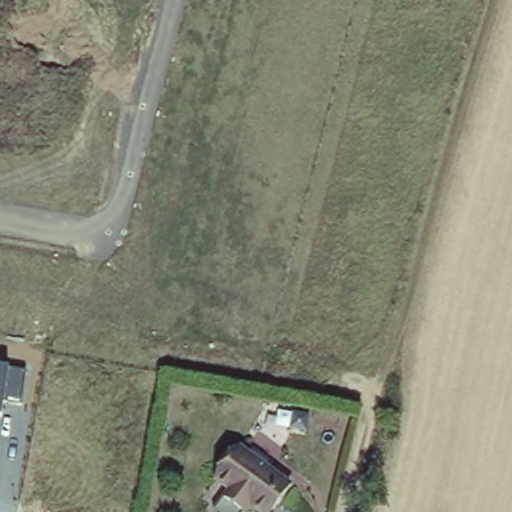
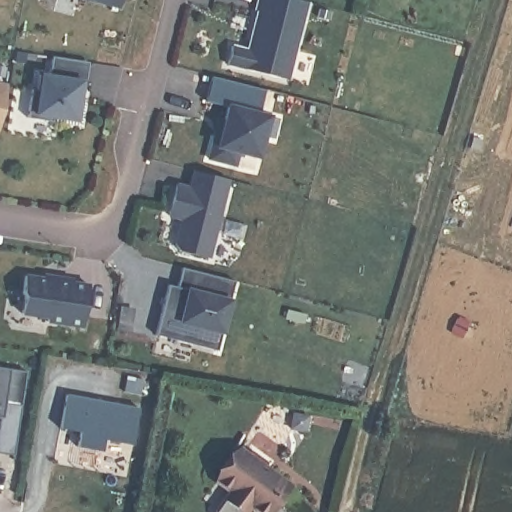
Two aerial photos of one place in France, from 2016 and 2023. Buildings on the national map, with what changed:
new [(80,0),(124,0),(121,10),(80,0)]
new [(288,82),(228,67),(232,49),(249,52),(258,13),(256,12),(259,0),(292,0),(308,4),(288,82)]
new [(80,124),(54,120),(53,125),(27,121),(31,92),(36,93),(39,77),(49,79),(52,59),(89,65),(86,86),(84,101),(80,124)]
new [(219,102),(204,99),(208,74),(264,86),(260,107),(278,111),(272,136),(263,134),(259,159),(237,155),(236,162),(210,155),(219,102)]
new [(0,121),(0,87),(6,89),(0,121)]
new [(229,182),(209,261),(180,254),(176,247),(182,222),(169,218),(176,187),(190,191),(195,174),(229,182)]
new [(236,284),(218,353),(156,338),(169,287),(177,290),(182,270),(236,284)]
new [(49,321),(22,317),(25,299),(23,296),(26,279),(55,283),(45,282),(45,278),(56,281),(74,283),(74,286),(90,288),(84,330),(48,325),(49,321)]
unchanged [(4,398),(1,416),(0,415),(0,366),(9,367),(25,373),(21,402),(4,398)]
new [(139,401),(134,442),(102,440),(100,447),(75,445),(77,431),(60,428),(65,392),(139,401)]
unchanged [(295,477),(269,512),(268,512),(215,480),(238,448),(295,477)]
unchanged [(249,505),(244,512),(242,512),(223,498),(229,491),(249,505)]

